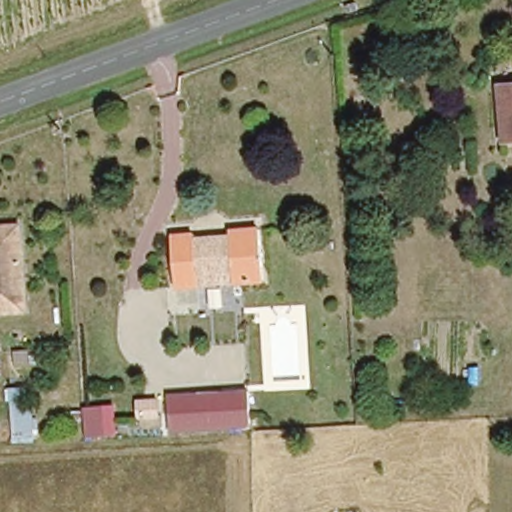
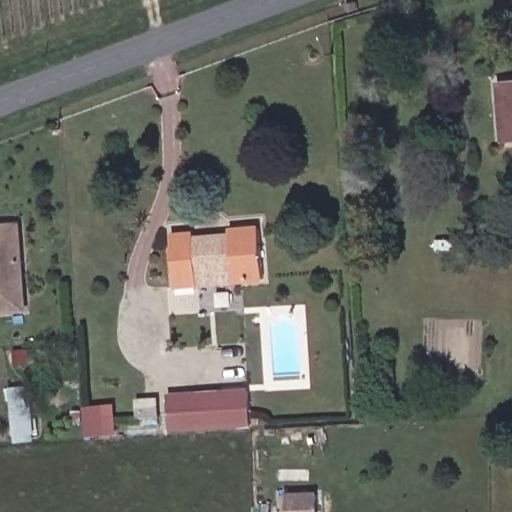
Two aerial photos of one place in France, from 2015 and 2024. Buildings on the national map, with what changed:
unchanged [(502,141),(501,82),(512,82),(512,141),(502,141)]
unchanged [(0,314),(0,228),(18,226),(24,312),(0,314)]
unchanged [(194,285),(171,286),(168,231),(191,230),(191,236),(228,234),(228,229),(260,227),(263,281),(231,283),(230,272),(194,274),(194,285)]
unchanged [(207,322),(231,322),(232,332),(207,332),(207,322)]
unchanged [(37,440),(12,442),(8,387),(33,386),(37,440)]
unchanged [(172,393),(252,388),(254,423),(247,424),(174,428),(172,393)]
unchanged [(106,436),(83,438),(81,404),(103,402),(106,436)]
new [(319,512),(286,512),(285,493),(318,492),(319,512)]

